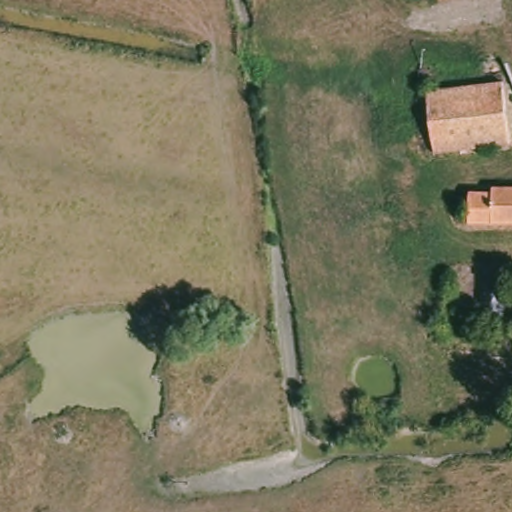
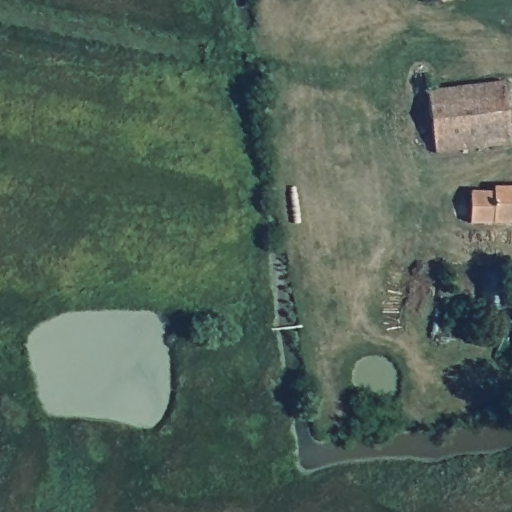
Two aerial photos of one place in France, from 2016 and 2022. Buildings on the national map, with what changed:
unchanged [(435,0),(439,0),(435,1),(435,0)]
unchanged [(422,95),(497,87),(505,149),(430,158),(422,95)]
unchanged [(494,190),(494,186),(512,186),(512,221),(471,222),(472,190),(494,190)]
unchanged [(512,292),(510,323),(481,320),(484,274),(512,276),(512,292)]

